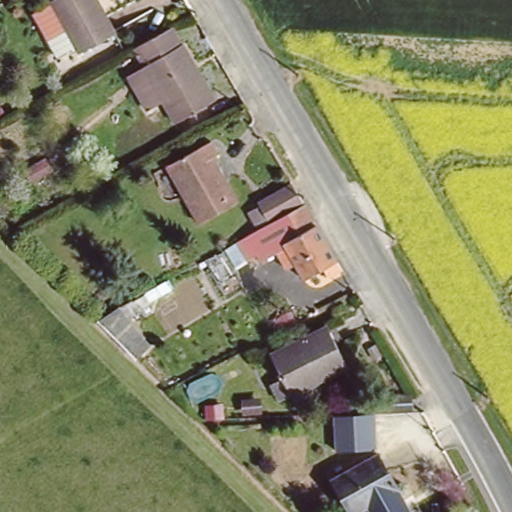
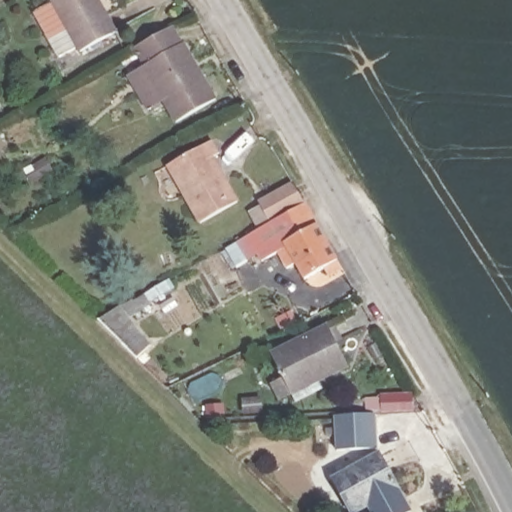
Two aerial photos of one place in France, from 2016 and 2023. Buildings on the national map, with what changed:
unchanged [(47,16),(44,12),(62,1),(62,0),(108,0),(124,28),(89,47),(86,42),(67,53),(58,38),(47,16)]
unchanged [(213,94),(175,116),(167,101),(152,110),(132,75),(147,67),(136,50),(175,27),(213,94)]
unchanged [(212,156),(205,160),(231,206),(193,227),(160,169),(205,144),(212,156)]
unchanged [(50,167),(26,178),(20,166),(40,154),(50,167)]
unchanged [(333,285),(328,275),(305,286),(295,267),(287,271),(277,254),(258,263),(247,243),(273,227),(263,210),(295,190),(305,207),(345,280),(333,285)]
unchanged [(142,331),(128,346),(99,317),(117,307),(142,331)]
unchanged [(283,398),(275,382),(286,375),(273,351),(330,321),(331,323),(337,321),(345,335),(339,338),(352,361),(322,377),(295,391),(283,398)]
unchanged [(397,410),(364,411),(363,396),(396,395),(397,410)]
unchanged [(362,418),(363,452),(323,455),(322,420),(362,418)]
unchanged [(356,512),(339,512),(323,483),(370,457),(389,493),(356,512)]

